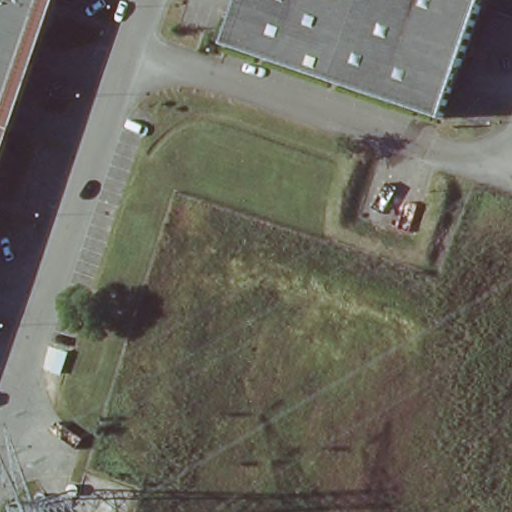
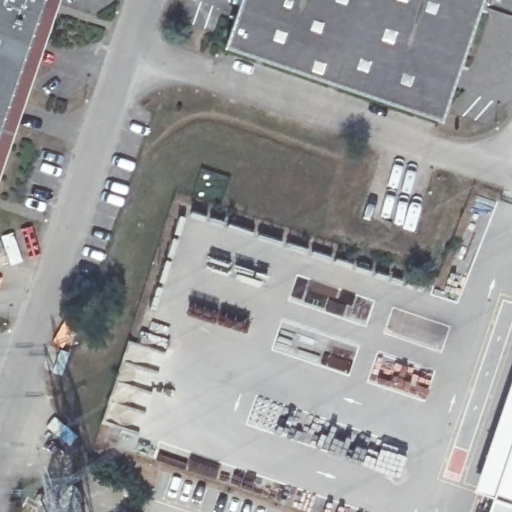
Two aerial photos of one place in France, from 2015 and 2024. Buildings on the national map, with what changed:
unchanged [(0,0),(54,0),(0,157),(0,0)]
unchanged [(445,117),(228,44),(243,0),(256,0),(461,70),(445,117)]
unchanged [(256,0),(484,0),(461,70),(256,0)]
new [(496,493),(477,487),(512,385),(512,512),(490,512),(496,493)]

